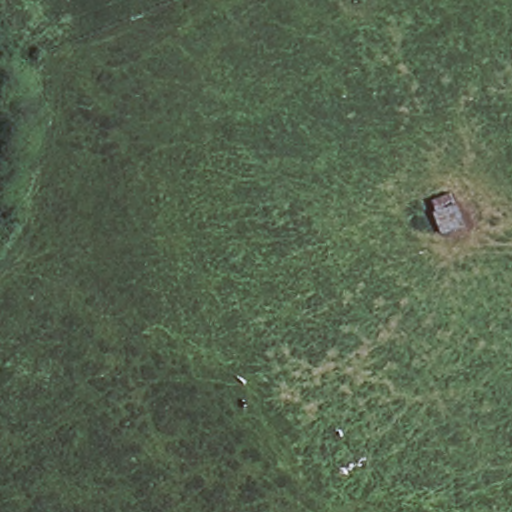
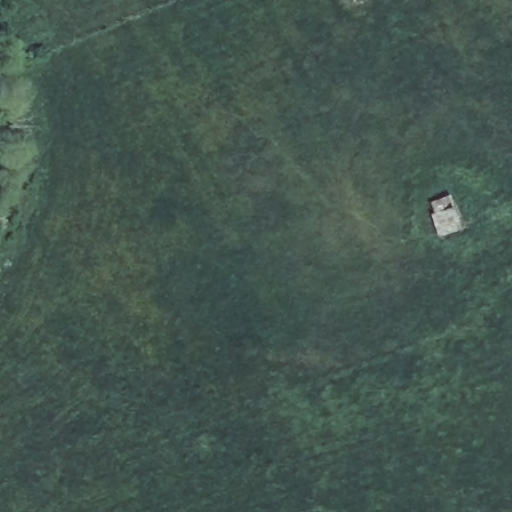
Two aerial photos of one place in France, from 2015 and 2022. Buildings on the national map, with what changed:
unchanged [(452,196),(469,227),(444,238),(433,201),(452,196)]

